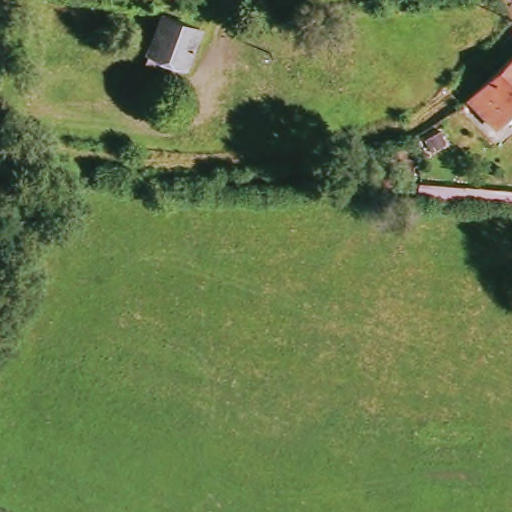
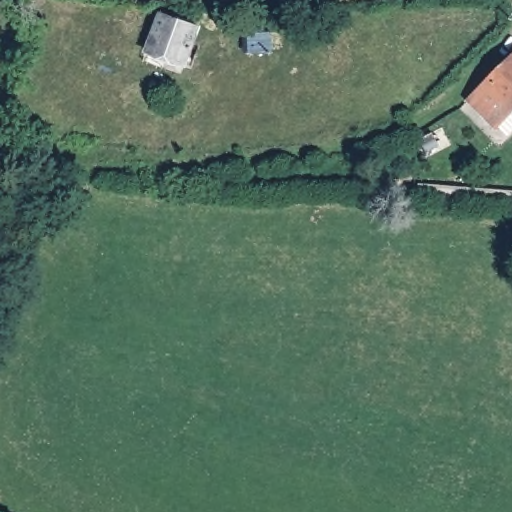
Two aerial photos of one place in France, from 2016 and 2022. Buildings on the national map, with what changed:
unchanged [(182,72),(142,55),(156,13),(196,33),(182,72)]
unchanged [(263,31),(245,32),(245,15),(262,15),(263,31)]
unchanged [(512,55),(512,112),(495,128),(469,97),(512,55)]
unchanged [(418,182),(512,190),(512,207),(417,198),(418,182)]

